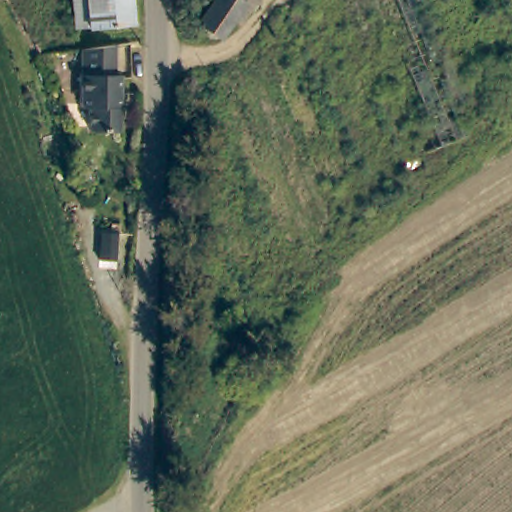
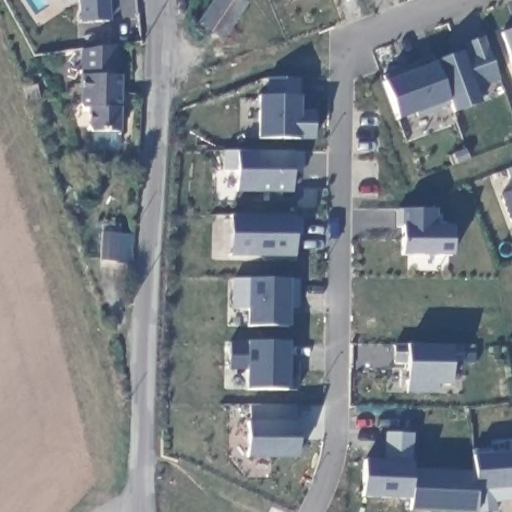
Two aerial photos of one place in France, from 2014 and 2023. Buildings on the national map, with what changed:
demolished [(90,27),(89,27),(76,27),(74,0),(131,0),(134,23),(90,27)]
new [(85,24),(83,0),(110,0),(113,21),(85,24)]
demolished [(188,24),(204,0),(249,0),(242,12),(233,6),(224,20),(210,42),(188,24)]
new [(195,22),(209,0),(242,0),(248,4),(223,41),(195,22)]
new [(502,31),(512,27),(512,58),(502,31)]
new [(435,61),(461,51),(464,57),(471,55),(467,42),(485,36),(500,82),(477,90),(482,105),(454,114),(450,102),(395,122),(381,80),(435,61)]
unchanged [(106,45),(106,76),(113,76),(113,132),(85,132),(80,125),(80,109),(76,109),(72,106),(72,74),(75,75),(74,49),(106,45)]
new [(301,95),(301,110),(315,110),(314,141),(258,138),(259,95),(266,95),(266,77),(301,77),(301,95)]
new [(303,170),(293,171),(292,192),(236,192),(238,170),(223,169),(223,151),(303,150),(303,170)]
new [(506,169),(512,166),(512,187),(506,169)]
new [(512,187),(512,221),(511,222),(500,191),(512,187)]
new [(436,224),(455,224),(454,254),(401,254),(401,209),(437,208),(436,224)]
new [(294,256),(231,255),(230,214),(296,216),(294,256)]
new [(299,307),(290,307),(290,326),(247,325),(247,308),(233,307),(233,278),(249,278),(291,279),(300,278),(299,307)]
new [(289,361),(297,361),(296,389),(287,388),(246,387),(247,369),(231,368),(230,340),(247,341),(290,342),(289,361)]
new [(465,362),(451,362),(449,386),(436,387),(436,394),(404,393),(404,385),(406,363),(392,362),(393,342),(409,343),(453,344),(462,343),(465,362)]
new [(298,418),(298,457),(249,457),(249,418),(250,403),(296,403),(298,418)]
new [(495,502),(495,512),(431,512),(411,511),(412,499),(362,496),(364,458),(383,460),(383,430),(415,432),(412,460),(412,468),(476,471),(474,453),(512,450),(512,500),(495,502)]

